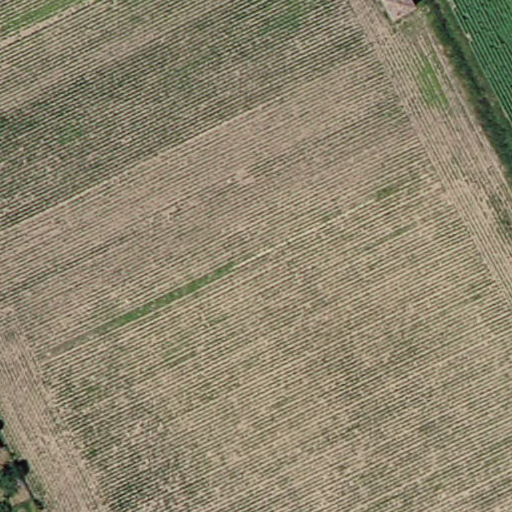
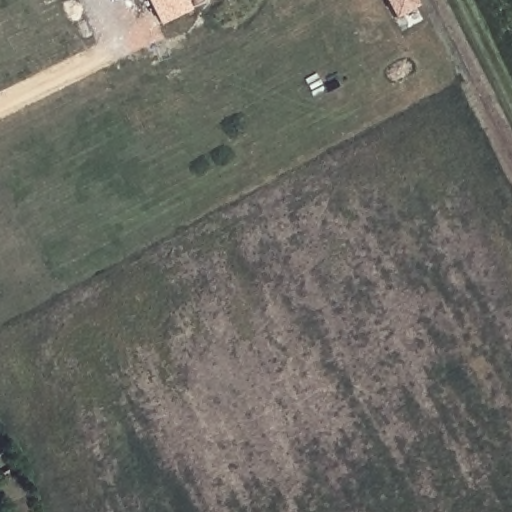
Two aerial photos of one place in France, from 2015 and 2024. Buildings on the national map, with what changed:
new [(184,0),(189,12),(160,25),(148,0),(184,0)]
unchanged [(371,0),(399,0),(402,5),(380,17),(371,0)]

